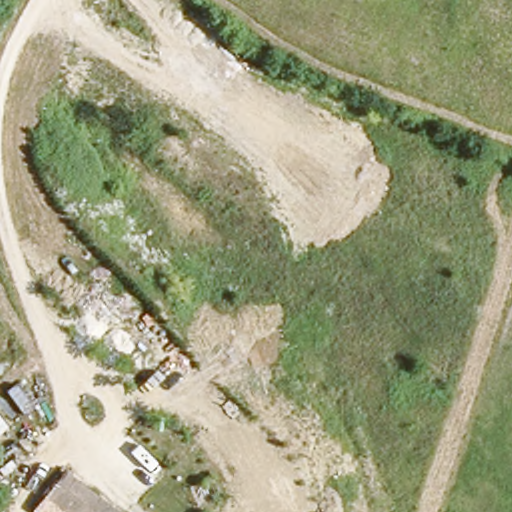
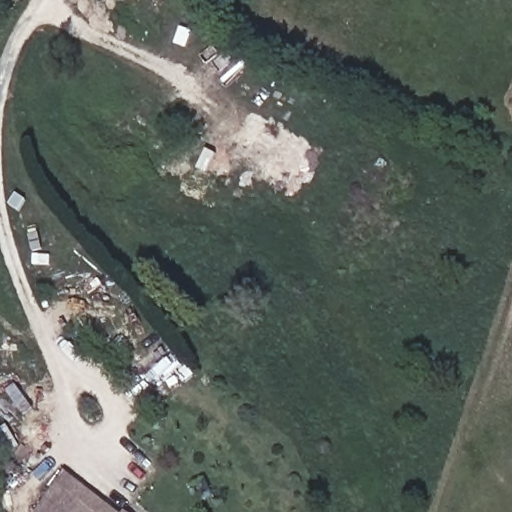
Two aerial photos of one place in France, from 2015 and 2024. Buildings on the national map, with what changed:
unchanged [(43,496),(64,469),(121,512),(63,512),(43,496)]
unchanged [(124,509),(128,512),(122,512),(124,509)]

